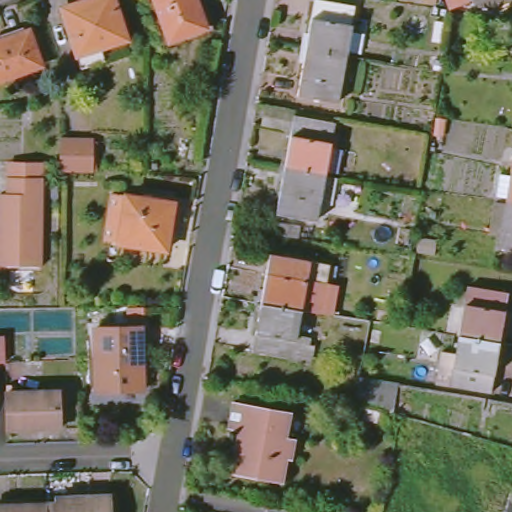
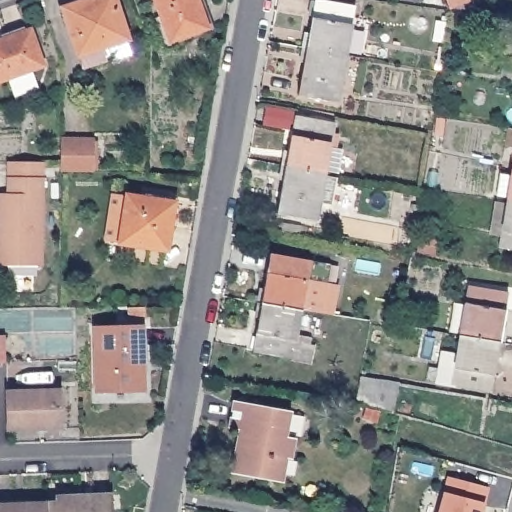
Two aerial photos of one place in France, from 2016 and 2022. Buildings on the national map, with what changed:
unchanged [(63,4),(75,0),(117,0),(128,34),(100,43),(105,57),(82,65),(77,51),(63,4)]
unchanged [(154,0),(196,0),(199,9),(197,10),(203,29),(168,41),(154,0)]
unchanged [(307,48),(315,0),(355,7),(346,55),(307,48)]
unchanged [(467,1),(450,8),(447,0),(467,0),(467,1)]
unchanged [(42,66),(0,81),(0,41),(30,31),(42,66)]
unchanged [(346,55),(338,101),(298,95),(307,48),(346,55)]
unchanged [(285,166),(295,116),(334,122),(325,173),(285,166)]
unchanged [(93,141),(92,174),(62,173),(60,173),(60,141),(93,141)]
unchanged [(0,231),(0,193),(8,193),(9,175),(9,161),(40,160),(42,160),(42,176),(40,264),(3,263),(0,263),(0,231)]
unchanged [(506,202),(512,165),(512,203),(506,202)]
unchanged [(325,173),(317,221),(277,214),(285,166),(325,173)]
unchanged [(172,250),(124,242),(108,239),(117,193),(132,195),(180,203),(172,250)]
unchanged [(512,203),(512,249),(500,248),(506,202),(512,203)]
unchanged [(287,303),(262,299),(270,251),(308,258),(300,305),(287,303)]
unchanged [(458,330),(467,281),(507,287),(499,337),(458,330)]
unchanged [(287,303),(300,305),(292,353),(253,346),(262,299),(287,303)]
unchanged [(95,330),(141,328),(143,389),(97,391),(95,330)]
unchanged [(499,337),(491,387),(450,380),(458,330),(499,337)]
unchanged [(355,402),(360,376),(398,383),(393,413),(355,402)]
unchanged [(7,392),(58,391),(60,427),(8,428),(7,392)]
unchanged [(286,408),(282,433),(289,435),(285,456),(282,455),(277,478),(265,476),(244,473),(240,448),(243,440),(240,439),(238,437),(237,434),(238,431),(240,429),(243,428),(224,424),(229,397),(275,406),(286,408)]
new [(487,486),(481,512),(439,512),(448,476),(487,486)]
unchanged [(110,501),(110,512),(50,512),(50,503),(110,501)]
unchanged [(7,508),(7,505),(50,503),(50,512),(0,512),(0,508),(7,508)]

